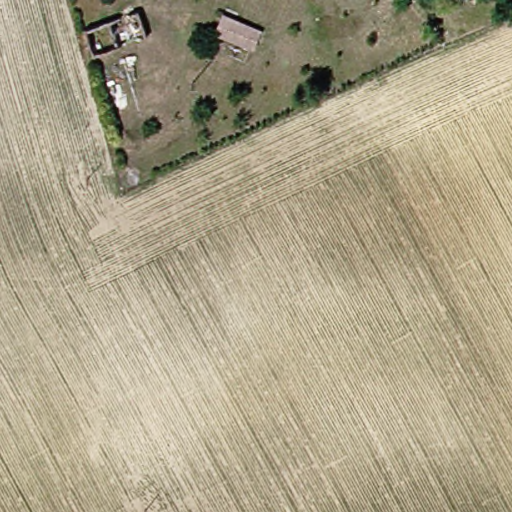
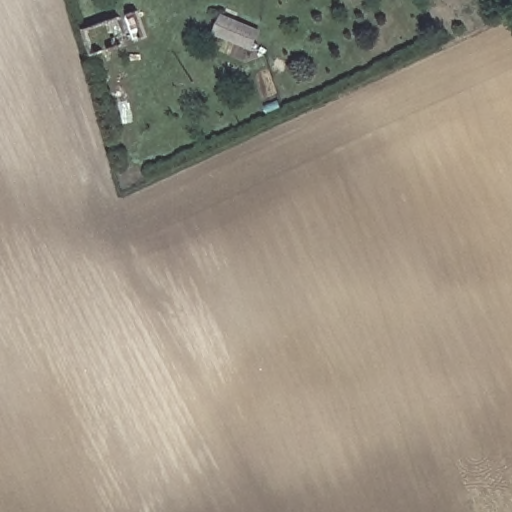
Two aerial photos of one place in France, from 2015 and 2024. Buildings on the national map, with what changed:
unchanged [(85,32),(136,12),(146,36),(95,56),(85,32)]
unchanged [(257,36),(251,56),(215,42),(221,23),(257,36)]

